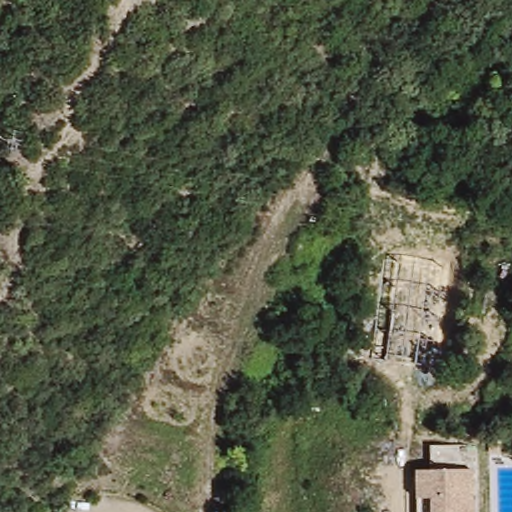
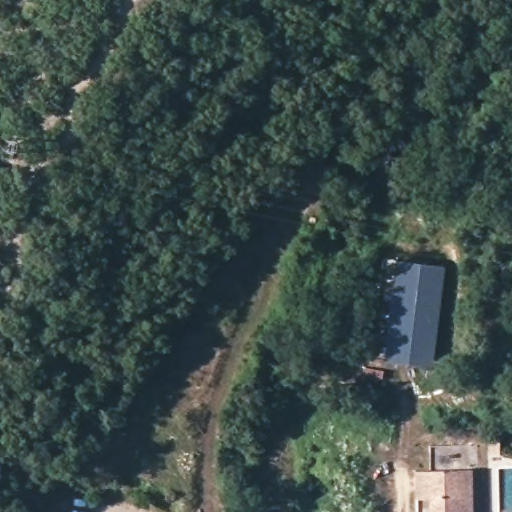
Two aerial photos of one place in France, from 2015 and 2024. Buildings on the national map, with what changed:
new [(386,261),(445,268),(440,366),(377,362),(386,261)]
unchanged [(415,499),(414,468),(470,468),(472,512),(431,512),(431,498),(415,499)]

